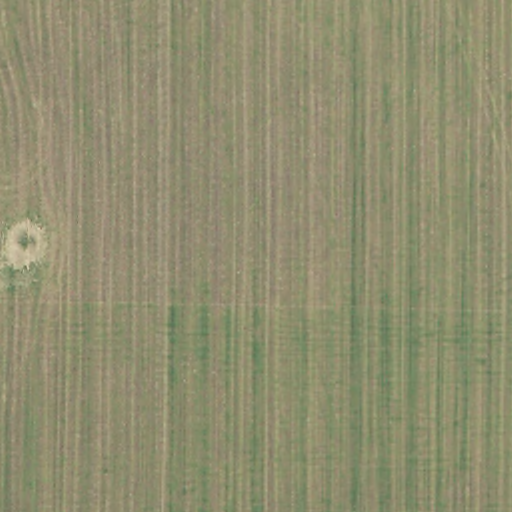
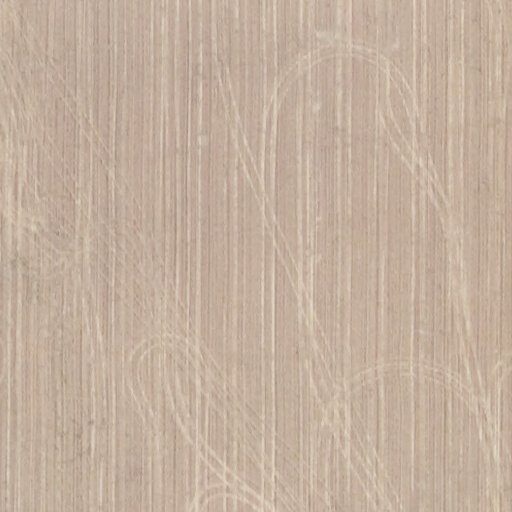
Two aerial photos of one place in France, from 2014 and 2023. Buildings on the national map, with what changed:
[]

